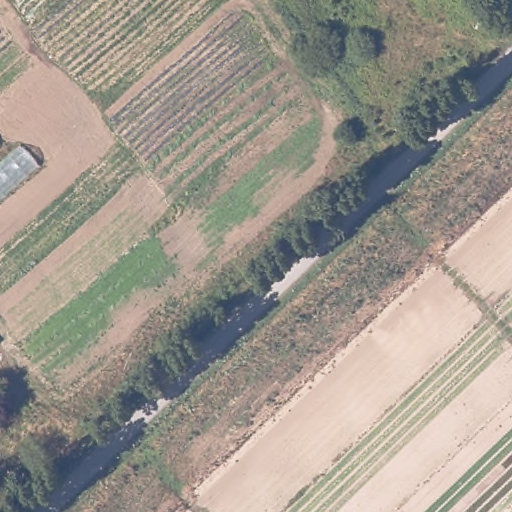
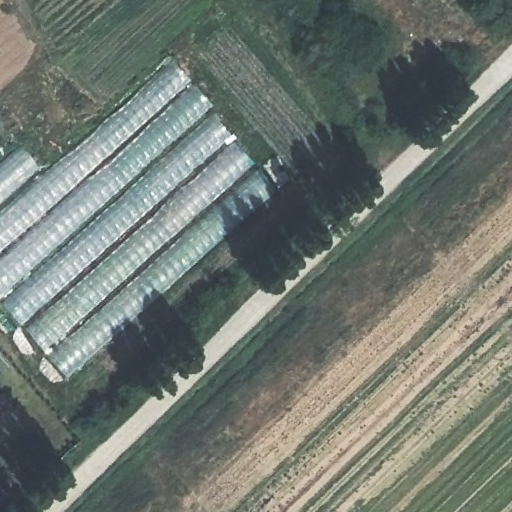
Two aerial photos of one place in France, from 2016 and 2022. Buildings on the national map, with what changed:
new [(43,174),(170,58),(276,187),(62,373),(0,303),(0,127),(43,174)]

